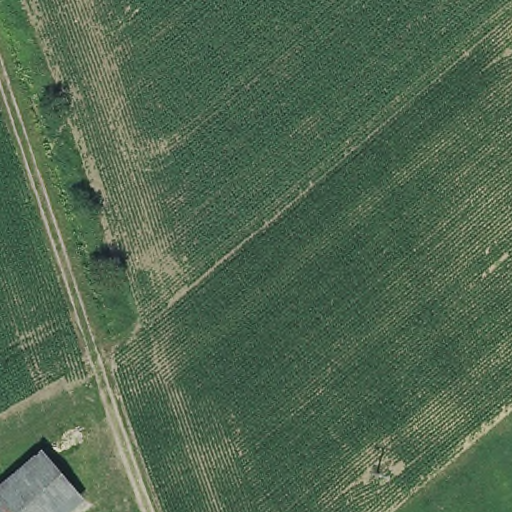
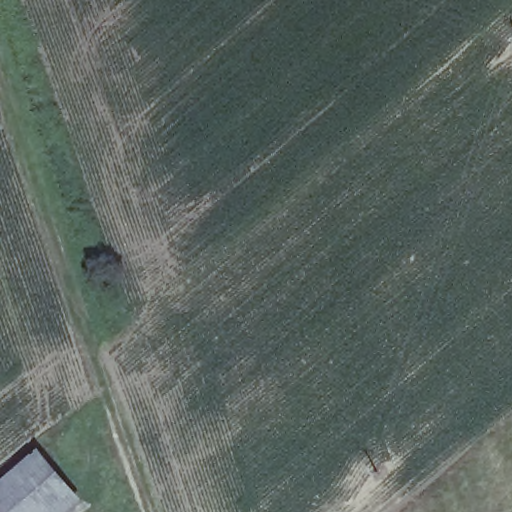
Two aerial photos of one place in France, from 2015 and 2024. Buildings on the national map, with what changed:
unchanged [(75,490),(49,512),(0,512),(0,480),(39,447),(75,490)]

